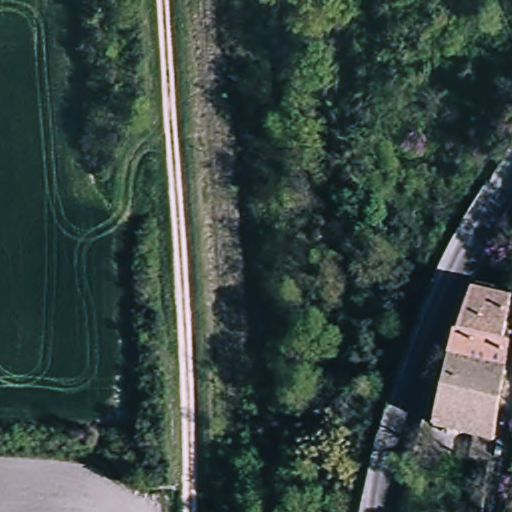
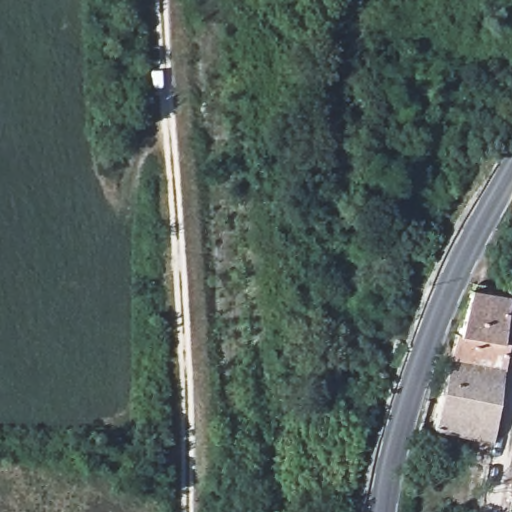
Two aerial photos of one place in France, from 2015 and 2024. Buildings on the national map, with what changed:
unchanged [(458,331),(462,331),(471,287),(506,292),(500,338),(506,339),(503,365),(452,354),(458,331)]
unchanged [(486,486),(473,484),(477,456),(467,453),(471,428),(436,418),(452,354),(503,365),(486,486)]

